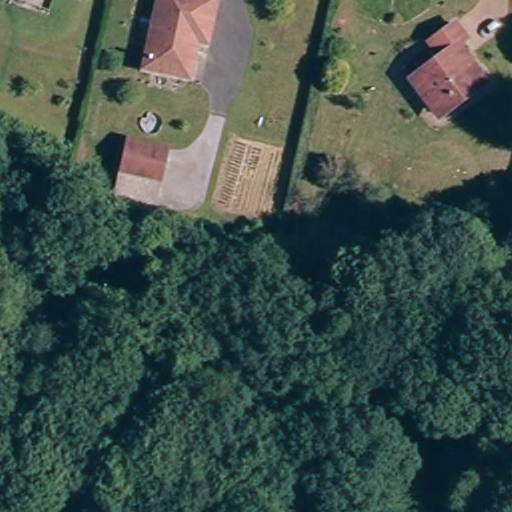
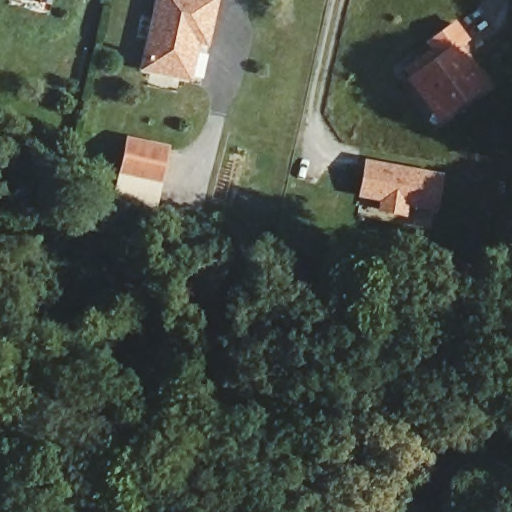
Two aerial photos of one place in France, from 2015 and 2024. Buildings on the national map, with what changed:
unchanged [(180,74),(147,68),(161,0),(213,0),(206,37),(197,36),(190,76),(180,74)]
unchanged [(448,104),(433,112),(412,75),(407,66),(437,49),(434,45),(462,30),(472,47),(464,51),(486,91),(471,99),(452,110),(448,104)]
unchanged [(168,144),(157,208),(114,199),(129,131),(168,144)]
new [(442,175),(437,212),(407,207),(405,217),(376,213),(378,200),(359,197),(366,159),(442,175)]

